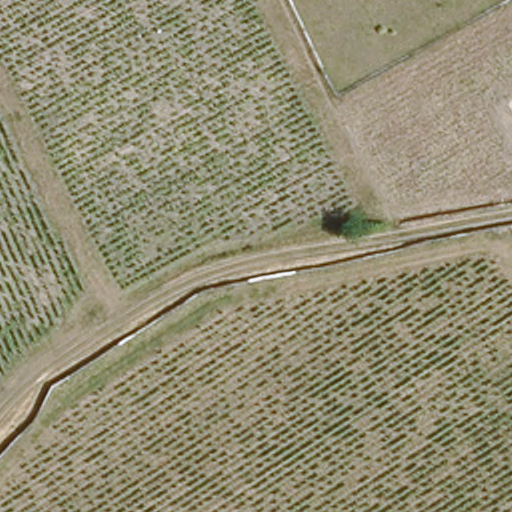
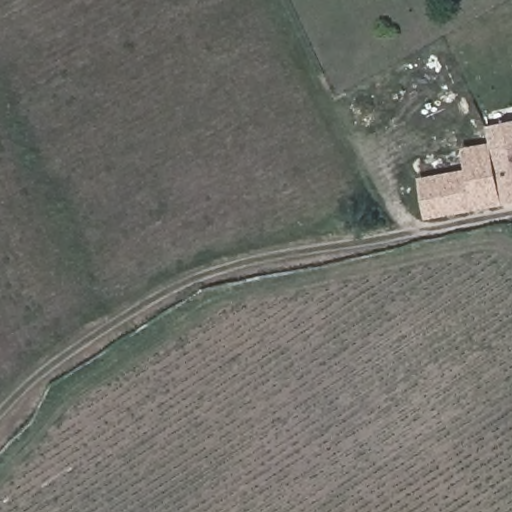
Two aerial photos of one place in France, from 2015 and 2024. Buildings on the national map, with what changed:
new [(485,126),(512,121),(512,204),(502,206),(485,126)]
new [(502,206),(427,220),(420,178),(466,169),(462,149),(489,144),(502,206)]

